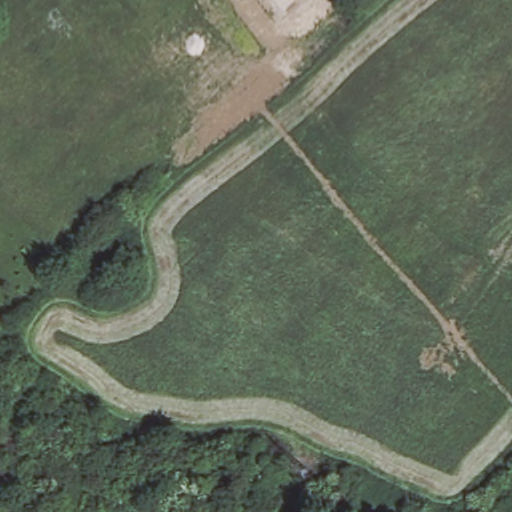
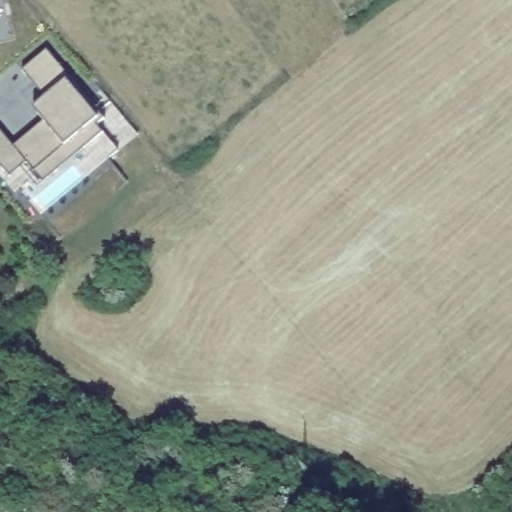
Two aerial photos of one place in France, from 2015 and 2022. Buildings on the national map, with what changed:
new [(27,163),(10,177),(0,165),(0,128),(15,146),(46,121),(34,107),(45,98),(22,68),(47,48),(105,118),(97,124),(103,133),(44,183),(27,163)]

